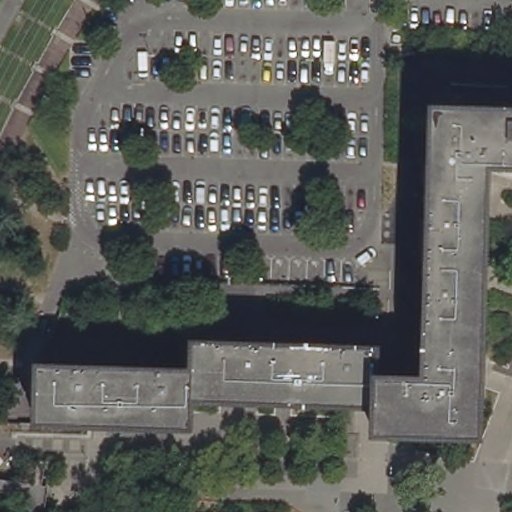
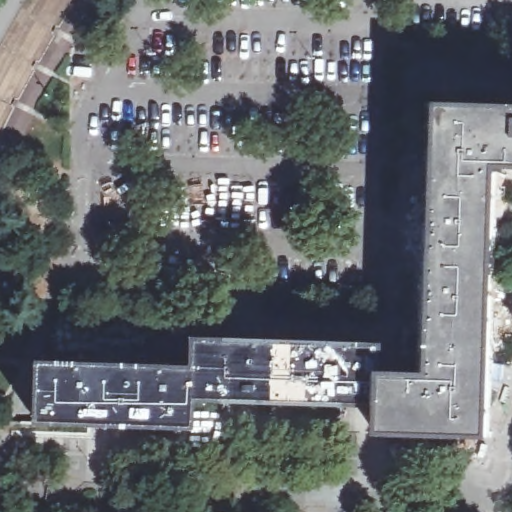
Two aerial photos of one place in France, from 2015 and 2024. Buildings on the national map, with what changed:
unchanged [(42,402),(42,367),(196,370),(196,342),(380,347),(379,376),(426,377),(436,109),(512,111),(512,168),(493,168),(488,289),(487,332),(483,436),(378,432),(378,403),(195,399),(193,426),(42,422),(42,402)]

